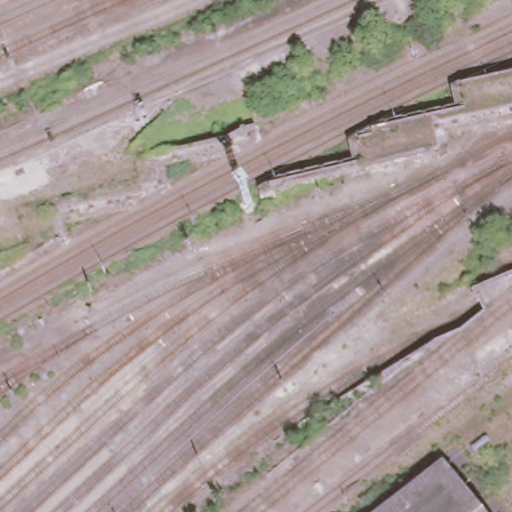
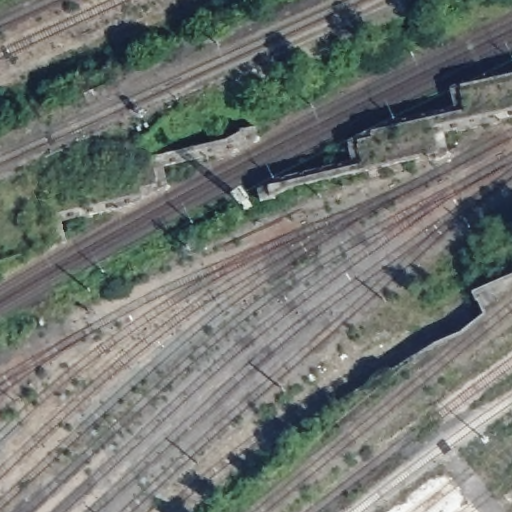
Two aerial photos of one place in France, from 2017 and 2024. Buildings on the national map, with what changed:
demolished [(462,487),(482,512),(379,512),(442,463),(462,487)]

